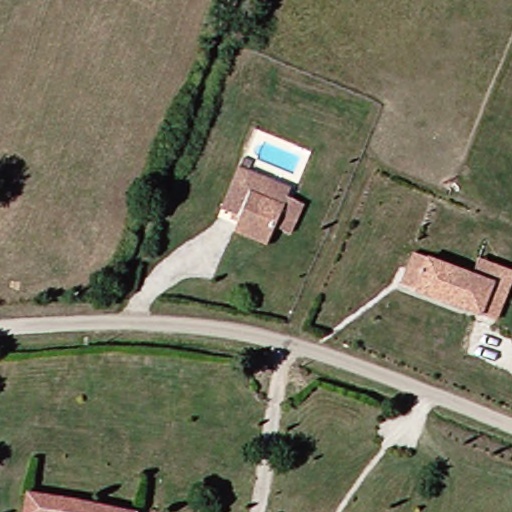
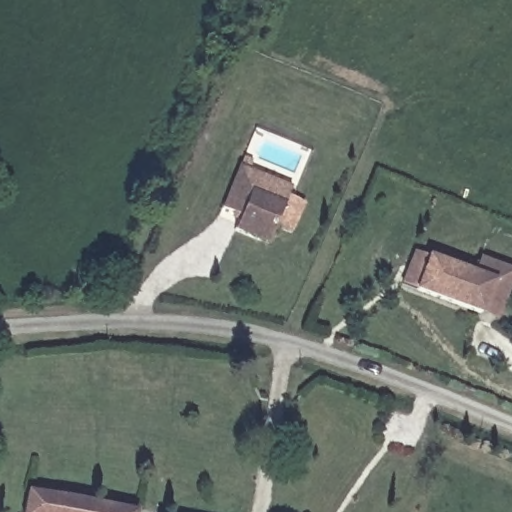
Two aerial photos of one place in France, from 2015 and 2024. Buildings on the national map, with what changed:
unchanged [(289,231),(277,226),(271,243),(234,230),(241,213),(226,207),(241,167),(281,182),(292,186),(285,205),(297,210),(289,231)]
unchanged [(512,269),(512,287),(500,319),(401,285),(416,251),(475,272),(481,257),(512,269)]
unchanged [(137,512),(32,512),(36,490),(138,510),(137,512)]

